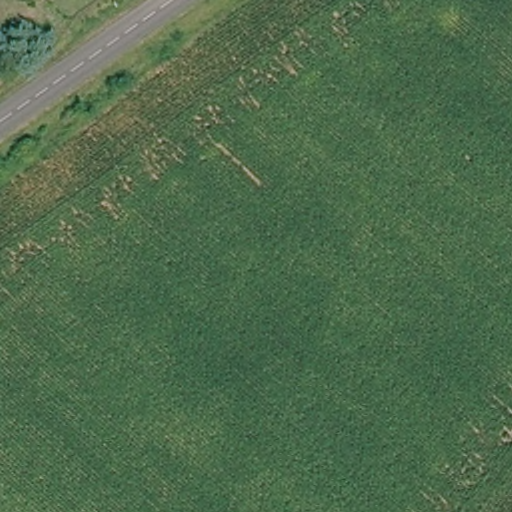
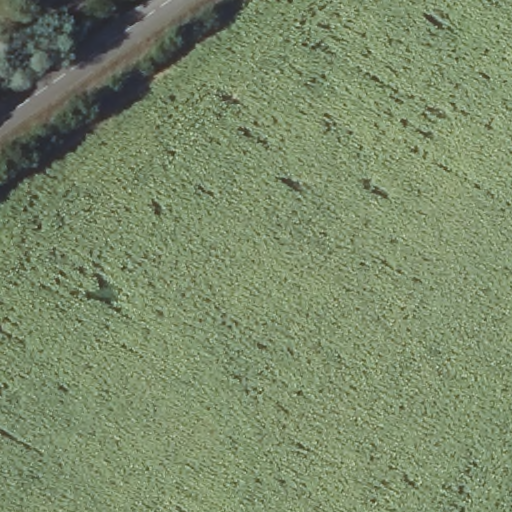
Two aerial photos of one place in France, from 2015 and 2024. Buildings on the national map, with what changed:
[]

